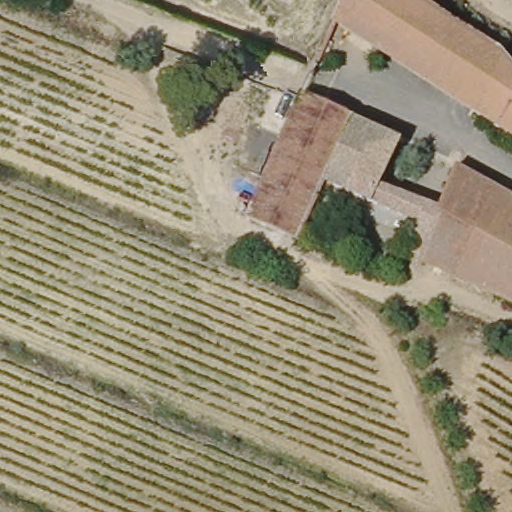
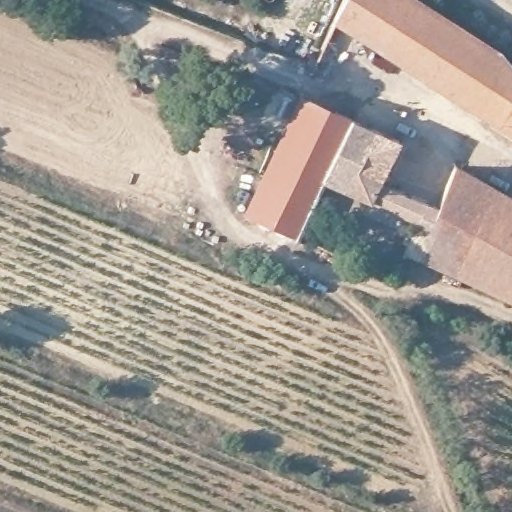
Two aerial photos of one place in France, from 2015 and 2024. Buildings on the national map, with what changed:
unchanged [(336,19),(343,0),(410,0),(422,7),(392,53),(336,19)]
unchanged [(392,53),(422,7),(504,57),(482,108),(392,53)]
unchanged [(512,66),(512,126),(482,108),(504,57),(512,66)]
unchanged [(297,94),(403,138),(386,181),(444,200),(459,163),(512,191),(512,294),(411,253),(423,222),(326,183),(302,239),(248,217),(297,94)]

